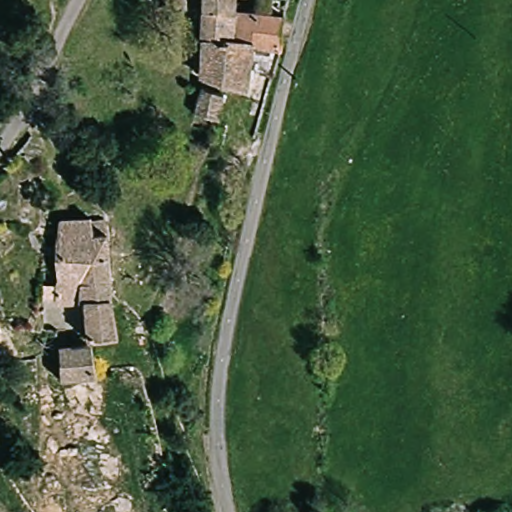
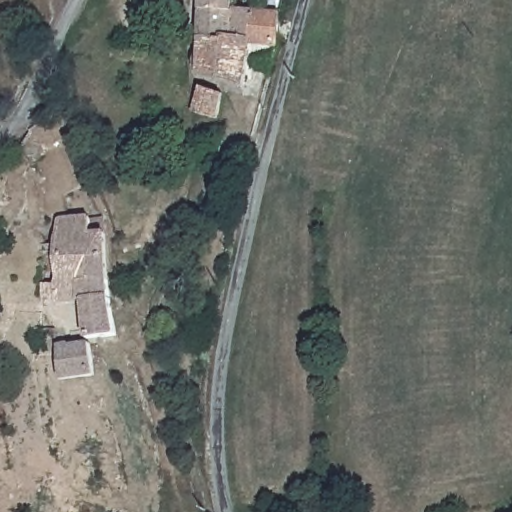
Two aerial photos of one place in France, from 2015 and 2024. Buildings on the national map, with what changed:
unchanged [(184,0),(184,8),(164,7),(164,0),(184,0)]
unchanged [(202,37),(205,0),(233,0),(232,8),(256,11),(256,0),(286,0),(284,14),(278,44),(271,70),(253,68),(258,41),(253,41),(246,85),(238,85),(197,70),(202,37)]
unchanged [(193,111),(201,90),(223,101),(218,121),(193,111)]
unchanged [(115,337),(86,341),(79,298),(58,302),(55,272),(66,269),(65,261),(55,261),(54,239),(63,237),(63,221),(85,219),(87,234),(101,234),(115,337)]
unchanged [(92,349),(96,379),(58,382),(58,351),(92,349)]

